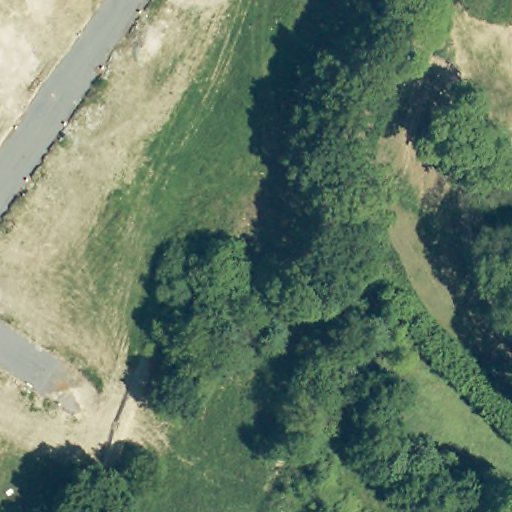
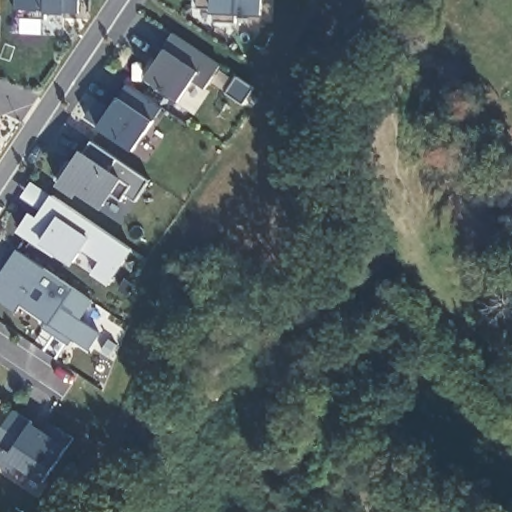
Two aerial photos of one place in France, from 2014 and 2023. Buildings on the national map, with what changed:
new [(46,10),(45,17),(15,16),(16,0),(79,0),(78,11),(46,10)]
new [(235,13),(235,21),(214,21),(214,6),(197,6),(198,0),(265,0),(264,14),(235,13)]
new [(207,87),(193,80),(181,98),(147,76),(174,34),(221,64),(207,87)]
new [(133,149),(85,115),(96,100),(110,107),(127,84),(162,106),(133,149)]
unchanged [(150,179),(137,199),(126,192),(123,199),(113,193),(103,208),(78,191),(76,195),(57,182),(82,147),(85,150),(92,139),(150,179)]
unchanged [(496,151),(512,146),(512,194),(496,151)]
new [(108,283),(91,271),(98,260),(81,250),(73,261),(54,252),(52,255),(15,231),(27,211),(36,216),(50,193),(132,248),(108,283)]
new [(102,333),(89,350),(75,340),(71,345),(45,328),(49,321),(21,305),(17,312),(0,301),(0,273),(16,248),(93,300),(80,319),(102,333)]
new [(0,399),(1,400),(0,401),(0,399)]
new [(15,463),(9,472),(0,466),(0,431),(14,410),(42,429),(48,421),(72,436),(43,481),(15,463)]

